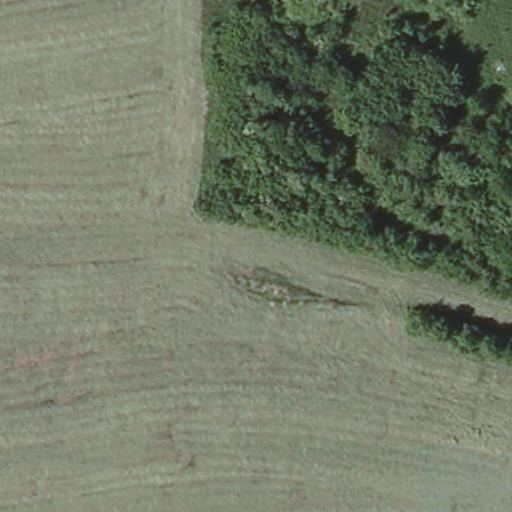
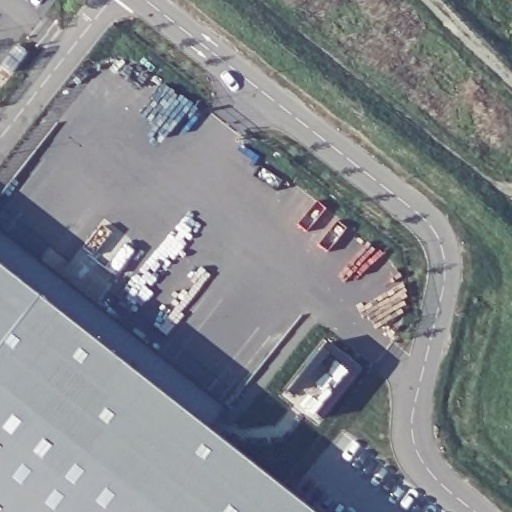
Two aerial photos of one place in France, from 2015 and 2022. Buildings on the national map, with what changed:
new [(205,427),(314,512),(0,512),(0,227),(223,403),(205,427)]

